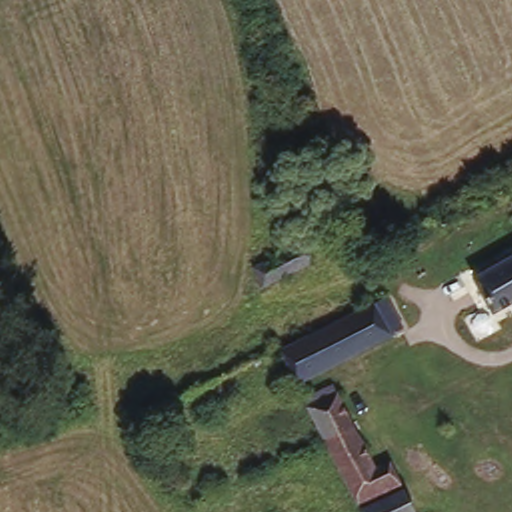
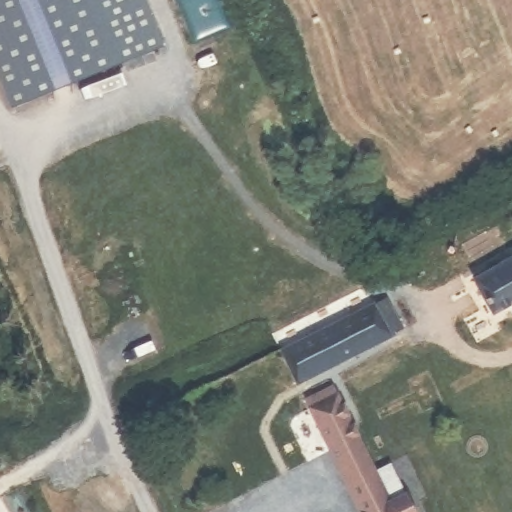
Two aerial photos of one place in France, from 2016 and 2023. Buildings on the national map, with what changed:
new [(164,44),(13,104),(0,72),(0,0),(147,0),(164,44)]
unchanged [(512,301),(493,310),(475,278),(512,257),(512,301)]
unchanged [(271,330),(360,288),(368,285),(377,302),(388,298),(405,332),(297,383),(271,330)]
unchanged [(372,469),(387,461),(414,512),(360,512),(351,495),(303,405),(332,391),(372,469)]
unchanged [(149,433),(138,437),(129,415),(138,412),(149,433)]

